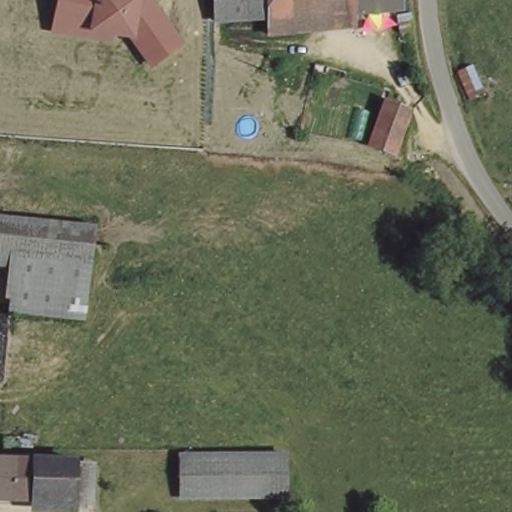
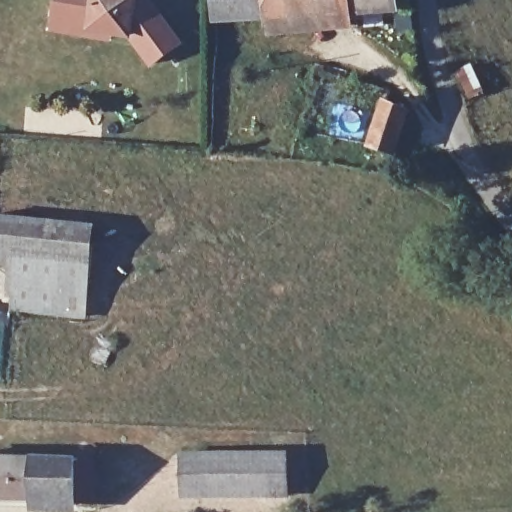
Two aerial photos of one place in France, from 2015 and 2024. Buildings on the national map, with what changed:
unchanged [(152,68),(131,39),(113,37),(112,41),(51,31),(57,0),(153,0),(184,44),(152,68)]
unchanged [(218,26),(214,0),(271,0),(273,23),(218,26)]
unchanged [(328,23),(329,36),(276,39),(273,23),(271,0),(404,0),(406,15),(328,23)]
unchanged [(419,40),(405,40),(404,21),(417,21),(419,40)]
unchanged [(402,98),(424,108),(408,147),(387,138),(402,98)]
unchanged [(0,222),(95,229),(93,269),(16,263),(0,261),(0,222)]
unchanged [(93,269),(93,306),(13,300),(16,263),(93,269)]
unchanged [(288,459),(288,496),(181,501),(178,464),(288,459)]
unchanged [(93,506),(73,504),(0,498),(0,463),(75,467),(75,463),(95,463),(93,506)]

